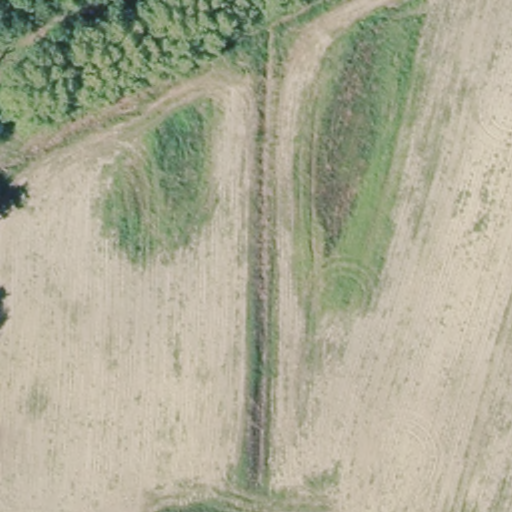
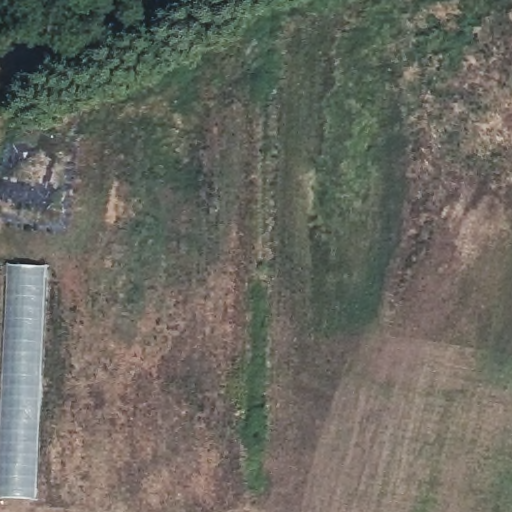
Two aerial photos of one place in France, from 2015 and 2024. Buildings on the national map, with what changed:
new [(46,265),(36,499),(0,498),(0,363),(5,262),(46,265)]

